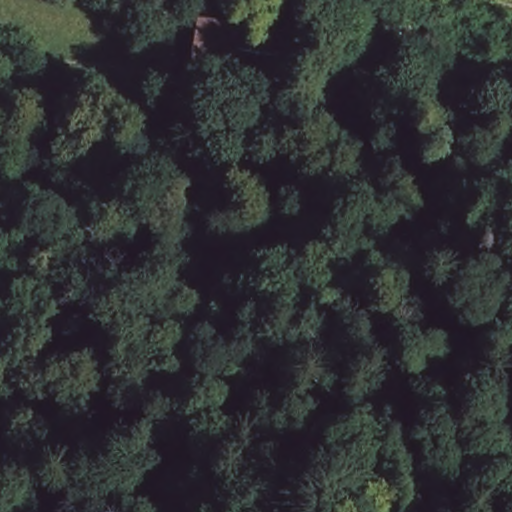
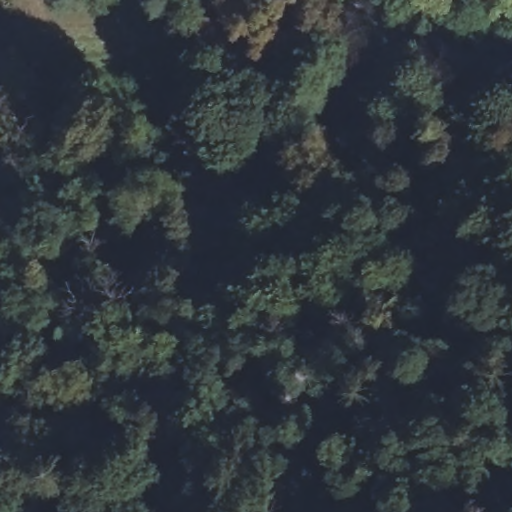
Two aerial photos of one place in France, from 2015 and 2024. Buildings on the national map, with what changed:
[]

